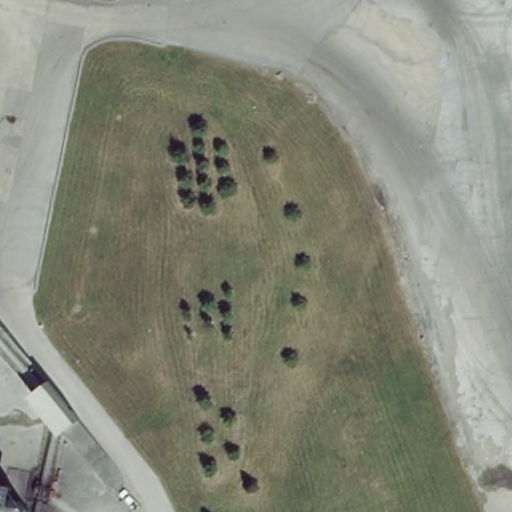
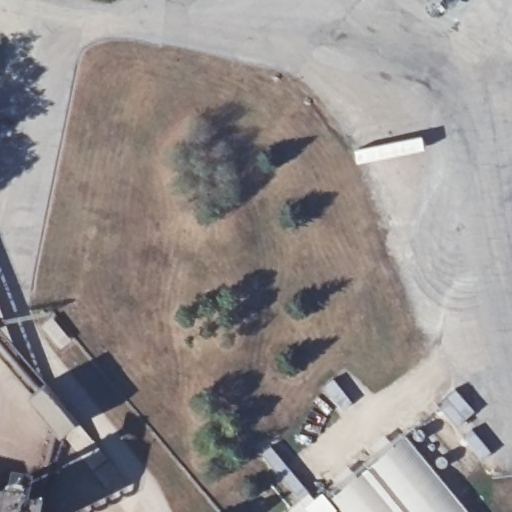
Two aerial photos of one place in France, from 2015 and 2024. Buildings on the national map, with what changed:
unchanged [(45,381),(80,421),(62,434),(30,394),(45,381)]
new [(343,512),(332,498),(405,437),(468,512),(343,512)]
unchanged [(30,512),(0,512),(0,493),(32,500),(30,512)]

